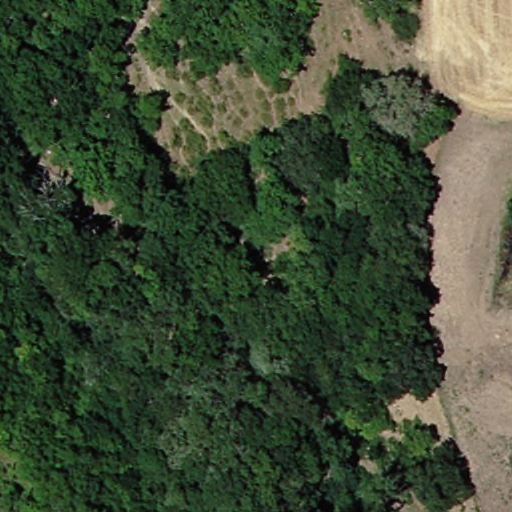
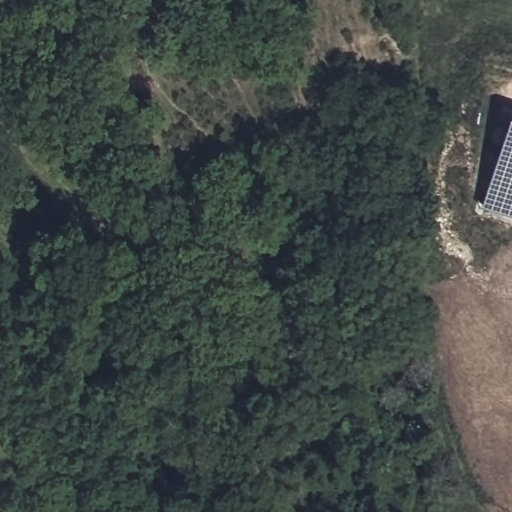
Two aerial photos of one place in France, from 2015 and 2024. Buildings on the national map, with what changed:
new [(478,206),(504,109),(512,111),(512,216),(478,206)]

